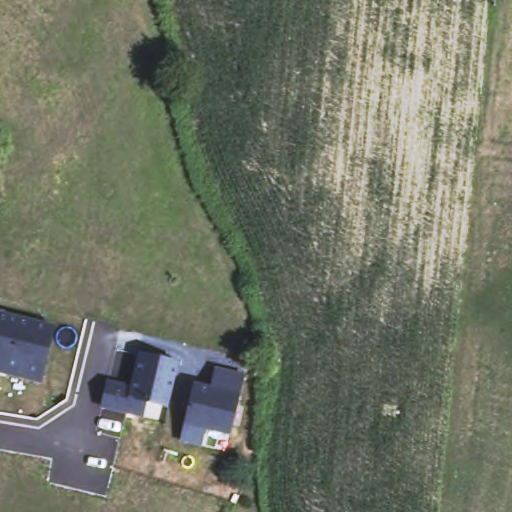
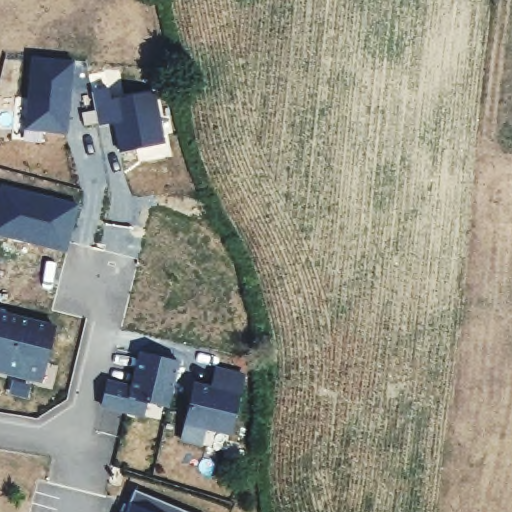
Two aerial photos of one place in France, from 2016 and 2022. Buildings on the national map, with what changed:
new [(31,57),(70,61),(64,129),(24,126),(31,57)]
new [(95,119),(90,92),(106,89),(108,101),(153,92),(162,142),(117,150),(112,121),(96,124),(95,119)]
new [(46,247),(0,236),(0,188),(77,206),(70,234),(65,252),(46,247)]
unchanged [(0,372),(0,313),(57,328),(42,383),(0,372)]
unchanged [(100,406),(106,382),(130,387),(139,353),(177,362),(167,406),(144,401),(141,415),(126,412),(100,406)]
unchanged [(180,440),(184,422),(192,383),(210,386),(214,367),(242,373),(227,432),(204,427),(200,444),(180,440)]
new [(122,503),(126,505),(132,490),(186,512),(119,512),(122,503)]

